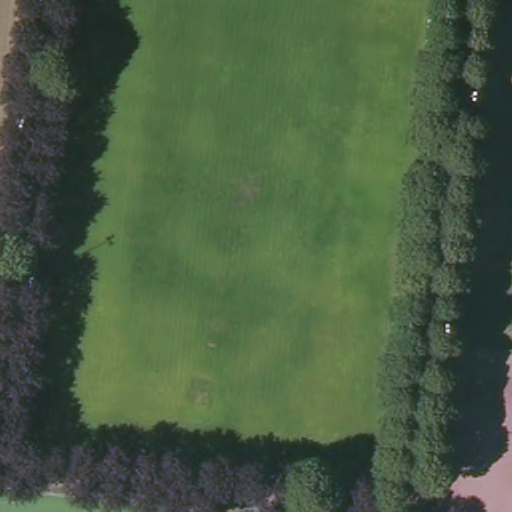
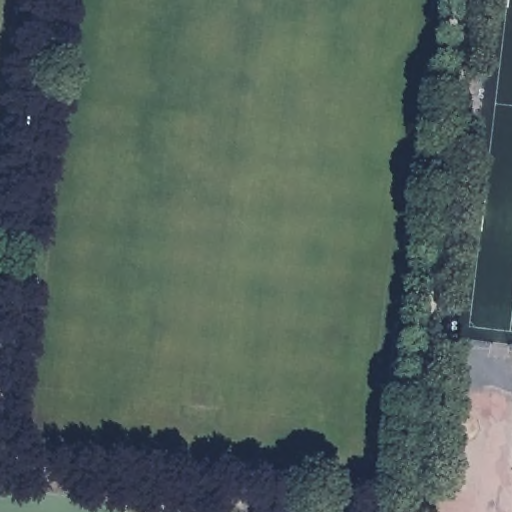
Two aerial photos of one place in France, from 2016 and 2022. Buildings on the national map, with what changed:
[]

